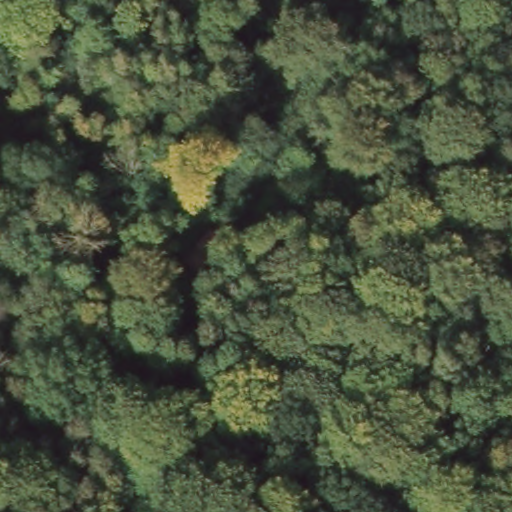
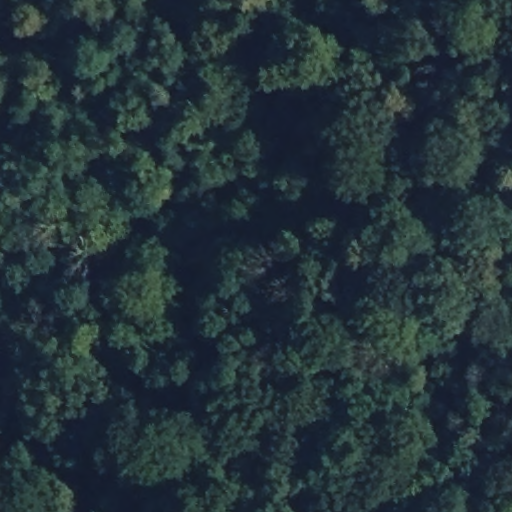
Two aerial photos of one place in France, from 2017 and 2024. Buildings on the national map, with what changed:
unchanged [(211,219),(229,234),(212,255),(194,239),(211,219)]

